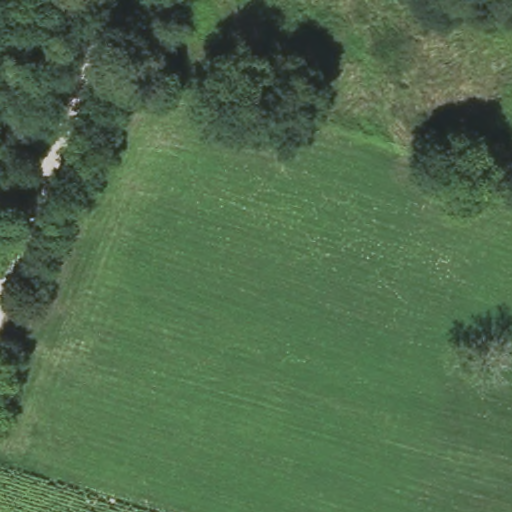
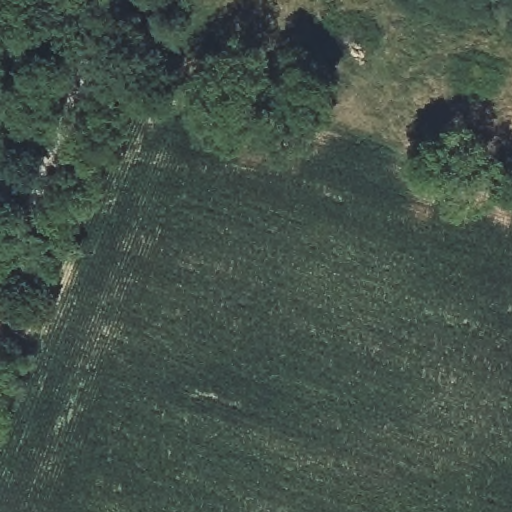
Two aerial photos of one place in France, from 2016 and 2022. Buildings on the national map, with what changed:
unchanged [(288,67),(275,110),(240,96),(254,51),(288,67)]

